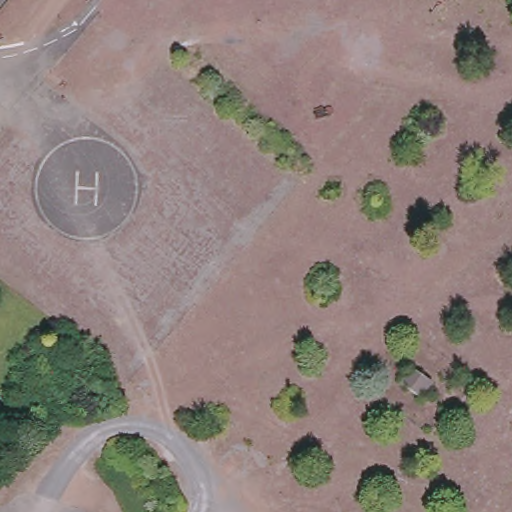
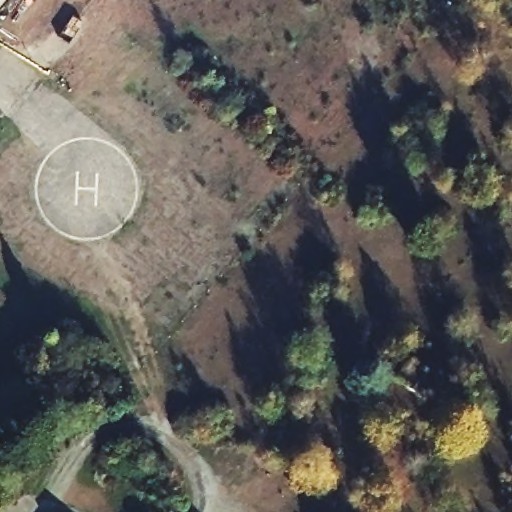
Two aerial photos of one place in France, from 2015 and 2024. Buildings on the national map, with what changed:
unchanged [(0,9),(0,0),(7,0),(0,9)]

